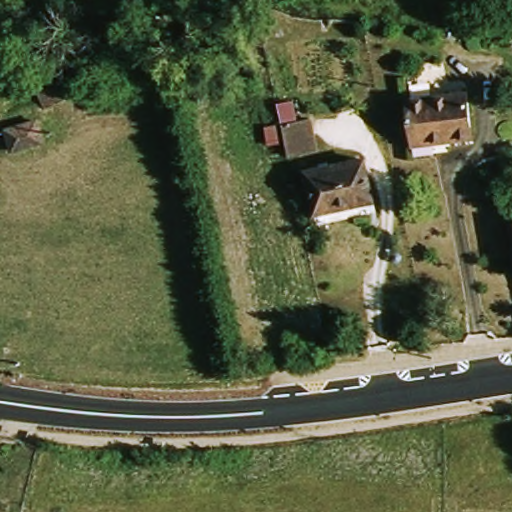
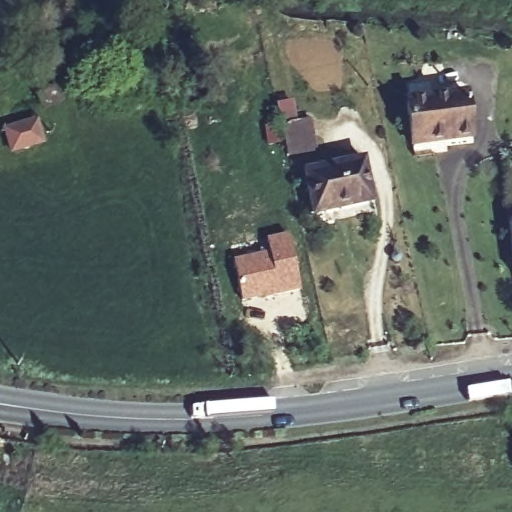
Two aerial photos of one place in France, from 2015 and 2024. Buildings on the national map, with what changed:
unchanged [(61,94),(40,102),(34,87),(53,77),(61,94)]
unchanged [(428,140),(408,142),(407,135),(404,96),(465,92),(469,130),(469,138),(428,140)]
unchanged [(32,115),(39,137),(10,146),(3,125),(32,115)]
unchanged [(286,156),(283,143),(269,144),(265,124),(311,119),(316,150),(286,156)]
unchanged [(313,207),(305,165),(361,155),(369,197),(313,207)]
unchanged [(510,225),(512,224),(512,242),(510,225)]
new [(268,250),(266,237),(289,233),(299,290),(241,302),(233,258),(268,250)]

